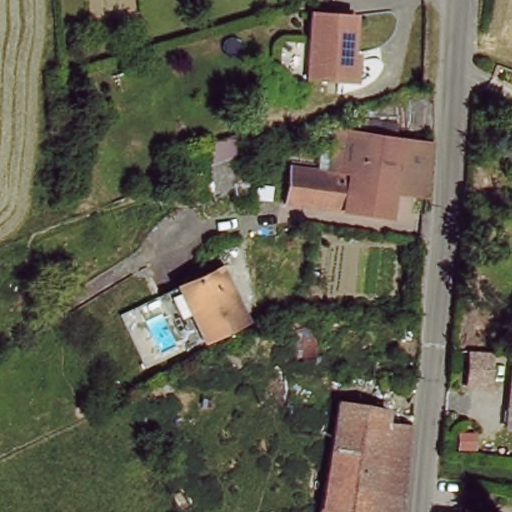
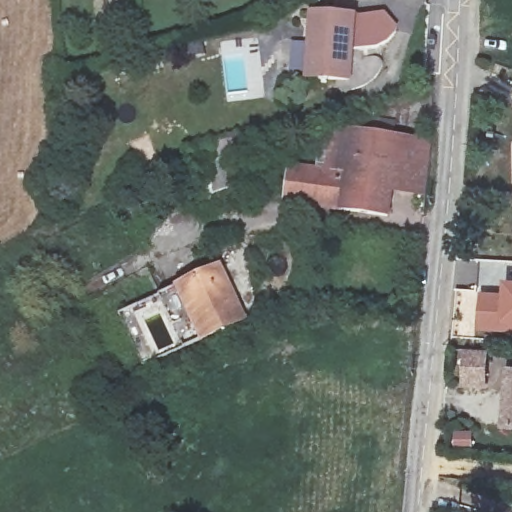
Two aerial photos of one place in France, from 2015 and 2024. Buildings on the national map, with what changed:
unchanged [(356,79),(314,79),(318,13),(359,14),(356,79)]
unchanged [(415,201),(416,189),(387,188),(384,215),(292,205),(285,204),(289,188),(293,168),(345,172),(350,136),(418,139),(418,149),(428,149),(425,200),(415,201)]
unchanged [(254,310),(192,339),(169,287),(232,259),(254,310)]
new [(507,282),(512,282),(512,335),(478,332),(482,295),(505,299),(507,282)]
unchanged [(489,363),(489,364),(486,398),(466,397),(469,363),(489,363)]
demolished [(413,368),(412,377),(401,376),(401,367),(413,368)]
unchanged [(512,378),(512,435),(505,434),(510,378),(512,378)]
demolished [(333,453),(341,399),(387,404),(386,416),(410,417),(407,463),(333,453)]
demolished [(403,512),(324,512),(333,453),(407,463),(403,512)]

